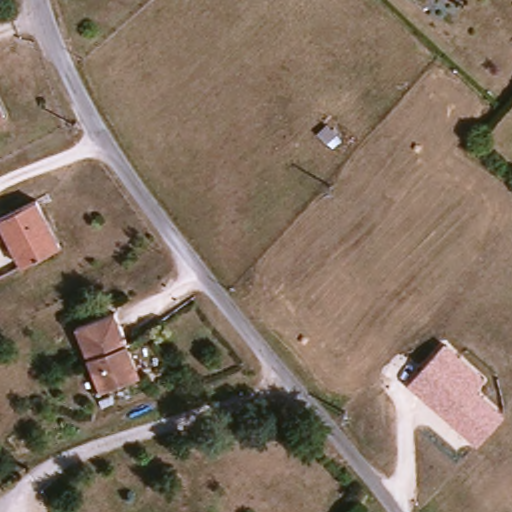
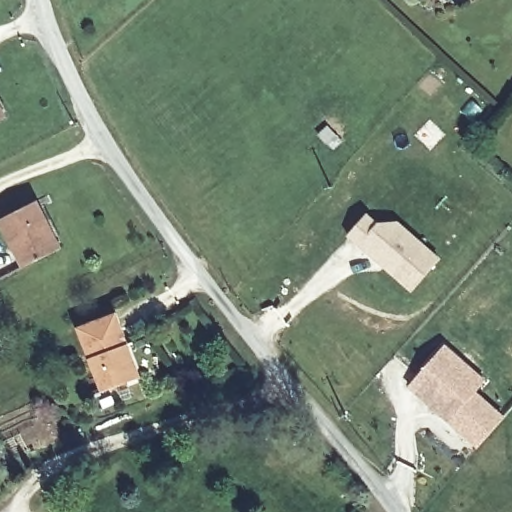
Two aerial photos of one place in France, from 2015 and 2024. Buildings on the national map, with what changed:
unchanged [(0,120),(0,99),(9,115),(0,120)]
unchanged [(22,270),(0,227),(0,221),(38,201),(62,249),(22,270)]
new [(372,225),(392,223),(432,259),(405,291),(354,245),(372,225)]
unchanged [(135,381),(102,395),(75,331),(114,314),(127,347),(140,378),(135,381)]
unchanged [(487,382),(477,394),(505,416),(477,447),(407,387),(445,345),(487,382)]

